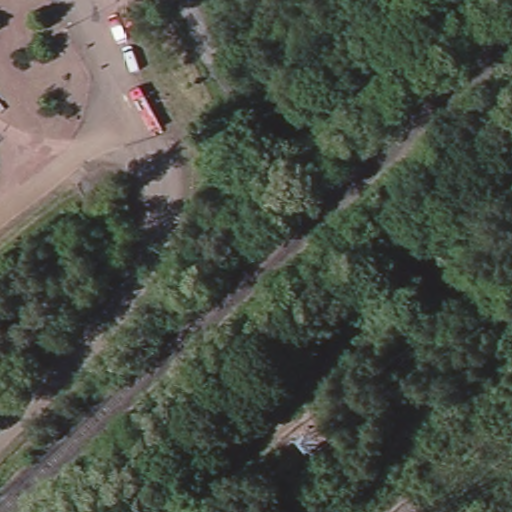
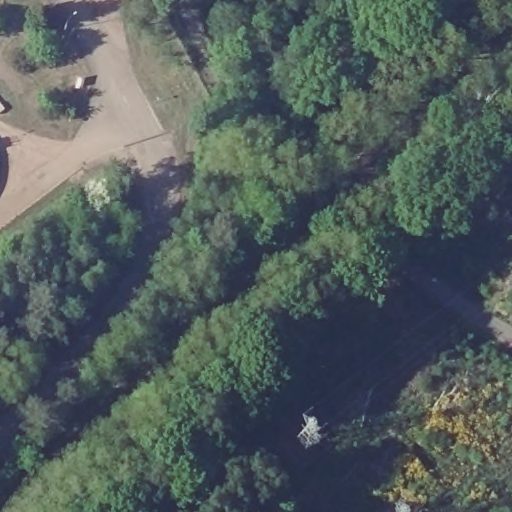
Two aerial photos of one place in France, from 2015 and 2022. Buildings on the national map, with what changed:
[]

